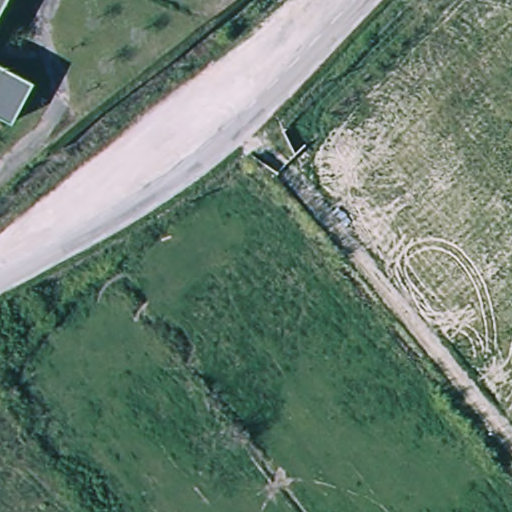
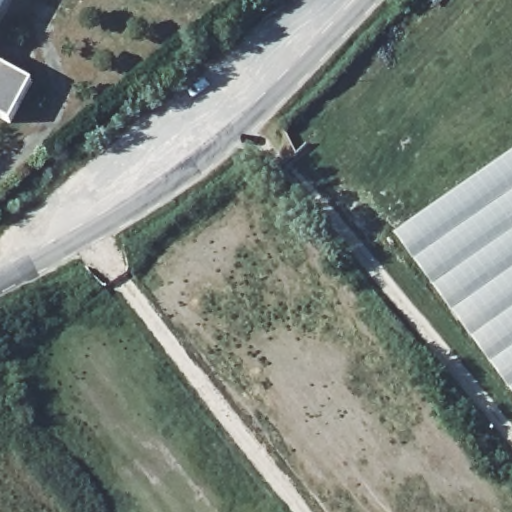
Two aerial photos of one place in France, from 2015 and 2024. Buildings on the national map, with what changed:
unchanged [(11,0),(0,21),(0,0),(11,0)]
unchanged [(37,90),(15,132),(0,124),(0,68),(37,90)]
new [(512,154),(512,392),(395,235),(512,154)]

